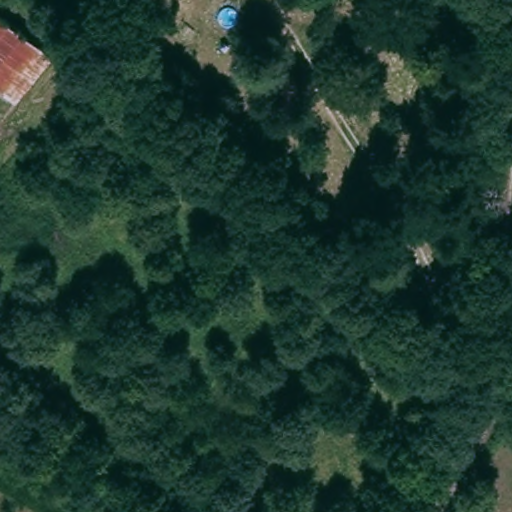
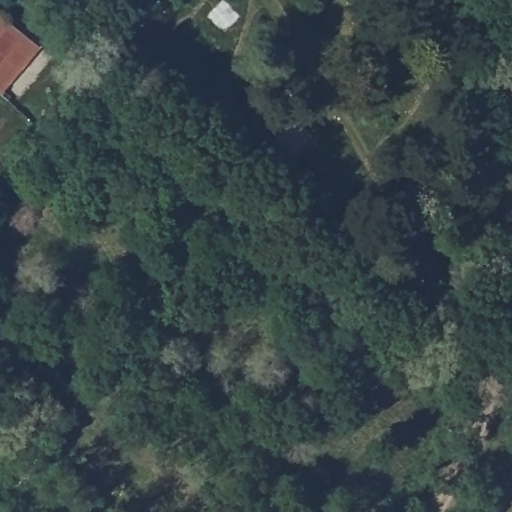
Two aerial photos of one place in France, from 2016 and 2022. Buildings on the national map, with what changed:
unchanged [(42,45),(0,106),(0,15),(42,45)]

